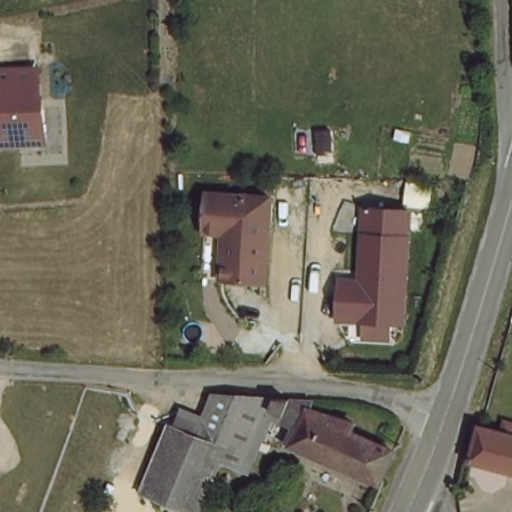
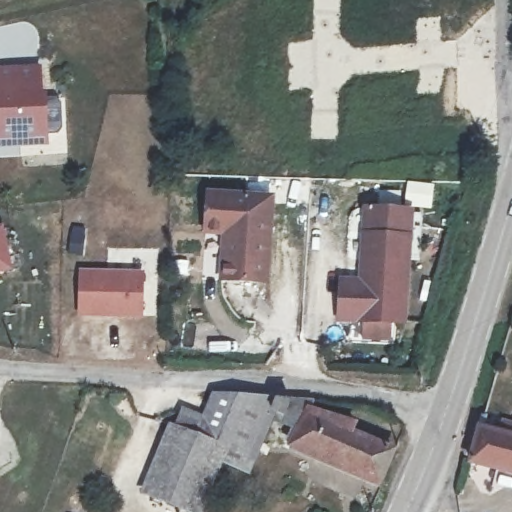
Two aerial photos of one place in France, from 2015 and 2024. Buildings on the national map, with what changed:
unchanged [(0,139),(0,68),(34,67),(35,95),(39,95),(40,130),(40,137),(15,138),(0,139)]
unchanged [(249,189),(272,191),(270,215),(266,276),(221,272),(225,226),(205,224),(208,186),(249,189)]
unchanged [(410,209),(402,318),(339,314),(342,276),(362,278),(367,206),(410,209)]
new [(0,224),(2,224),(13,270),(0,273),(0,224)]
new [(77,316),(78,267),(144,270),(143,319),(77,316)]
unchanged [(228,448),(177,425),(185,408),(209,419),(220,393),(262,395),(290,397),(304,402),(290,431),(271,422),(240,487),(225,480),(213,505),(206,502),(228,448)]
unchanged [(377,480),(286,440),(290,431),(304,402),(355,422),(350,432),(390,449),(377,480)]
unchanged [(168,512),(145,502),(177,425),(228,448),(206,502),(202,512),(168,512)]
unchanged [(512,437),(512,474),(473,463),(482,429),(512,437)]

